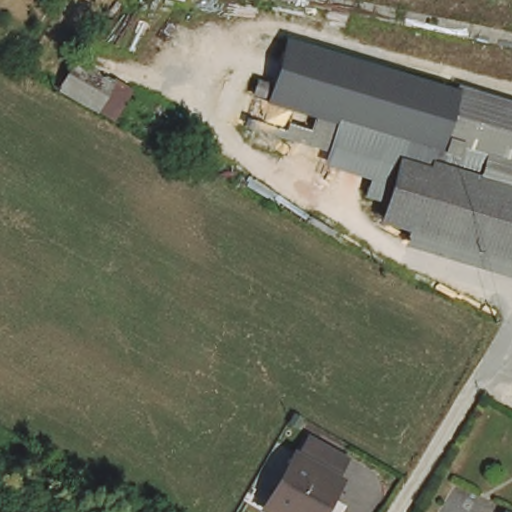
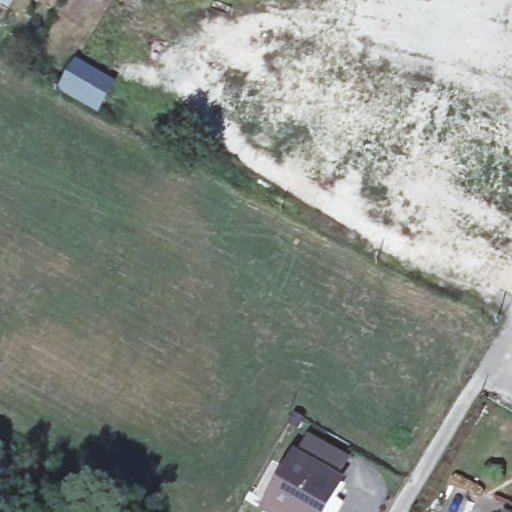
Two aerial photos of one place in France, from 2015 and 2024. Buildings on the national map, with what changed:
new [(405,162),(253,121),(276,39),(512,105),(512,253),(389,219),(405,162)]
unchanged [(64,91),(83,60),(121,79),(103,111),(64,91)]
unchanged [(290,458),(292,459),(302,438),(342,460),(331,480),(334,482),(318,512),(263,512),(262,512),(290,458)]
unchanged [(502,508),(510,512),(500,512),(502,508)]

